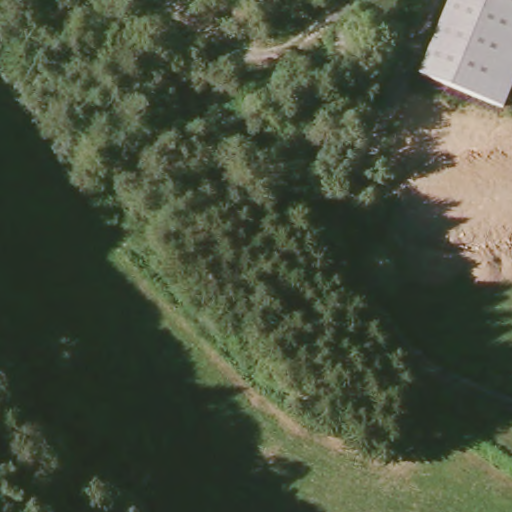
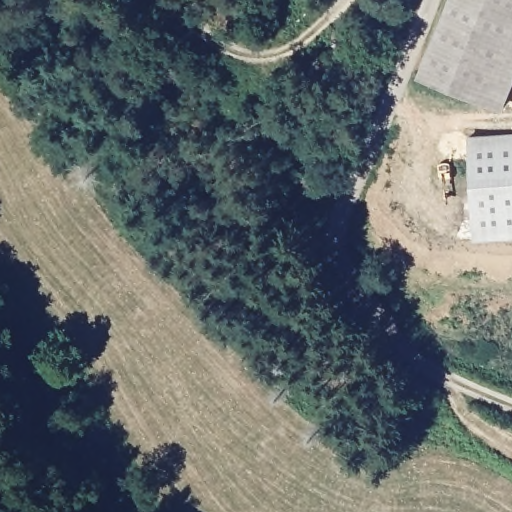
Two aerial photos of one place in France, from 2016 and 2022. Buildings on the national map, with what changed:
unchanged [(512,0),(512,81),(502,107),(419,74),(449,0),(512,0)]
new [(476,240),(468,135),(512,132),(512,237),(476,240)]

